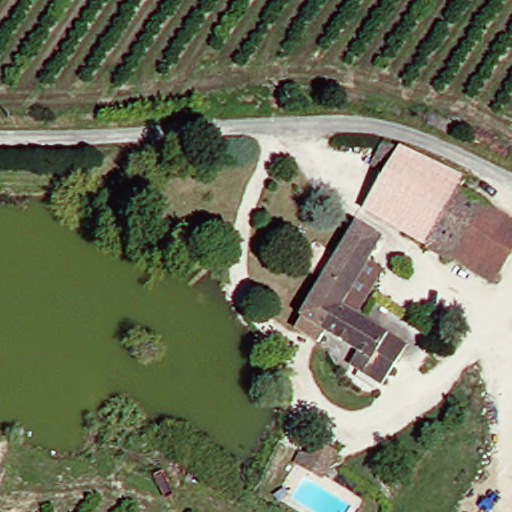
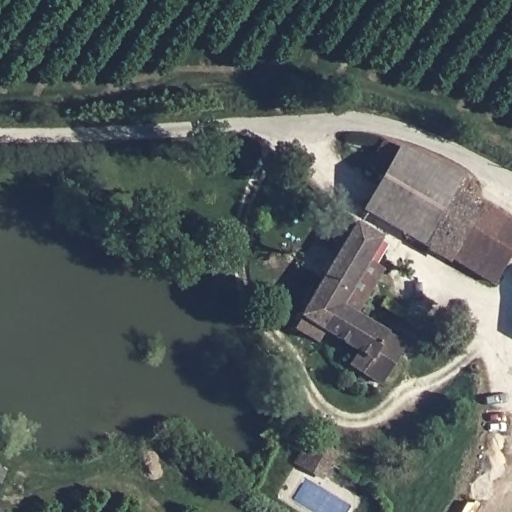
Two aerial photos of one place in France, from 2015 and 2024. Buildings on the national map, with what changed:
unchanged [(341,146),(385,158),(401,137),(482,180),(471,191),(501,209),(468,264),(372,210),(381,197),(333,168),(340,149),(341,146)]
unchanged [(512,215),(512,267),(501,285),(468,264),(501,209),(512,215)]
unchanged [(375,317),(420,342),(395,386),(357,363),(363,351),(348,342),(336,336),(332,346),(303,328),(361,227),(389,241),(377,261),(395,270),(377,301),(370,314),(375,317)]
unchanged [(329,450),(323,464),(304,452),(311,440),(329,450)]

